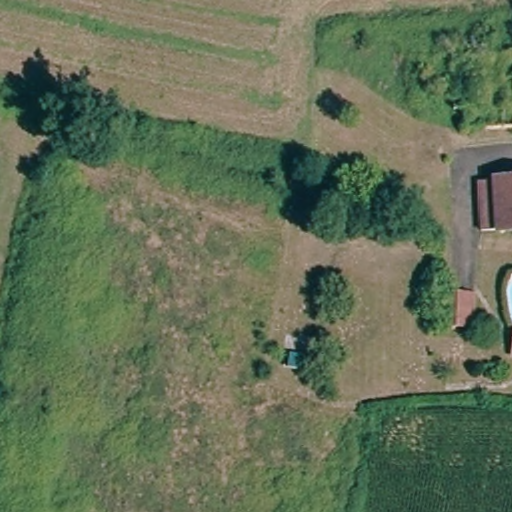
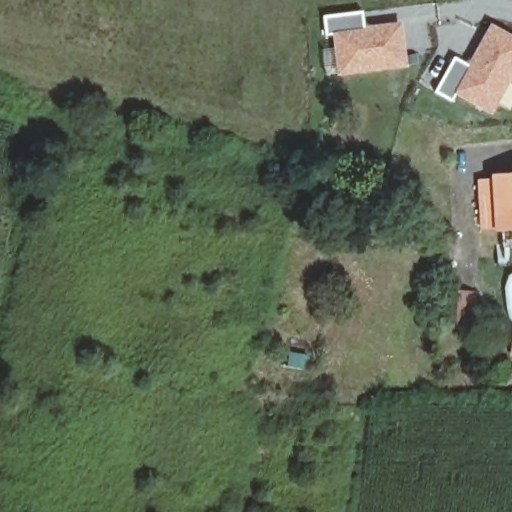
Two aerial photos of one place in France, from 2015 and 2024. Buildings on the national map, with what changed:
new [(366,29),(404,25),(409,70),(339,77),(335,35),(325,36),(324,19),(363,15),(366,29)]
new [(452,102),(437,93),(455,60),(467,67),(490,24),(512,37),(512,81),(492,117),(456,95),(452,102)]
unchanged [(480,191),(495,191),(495,175),(512,175),(512,224),(479,224),(480,191)]
unchanged [(445,293),(468,295),(466,325),(442,324),(445,293)]
unchanged [(297,365),(299,346),(323,349),(321,369),(297,365)]

